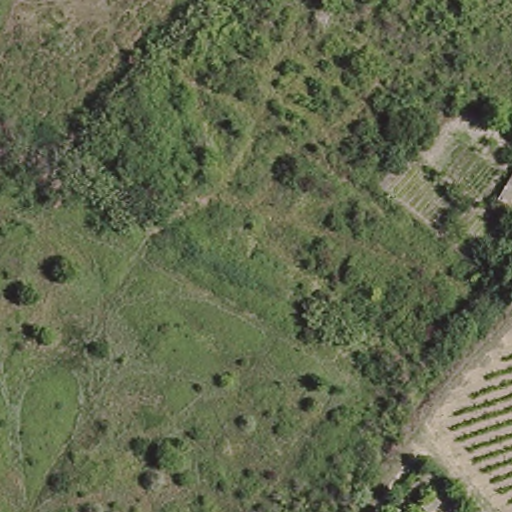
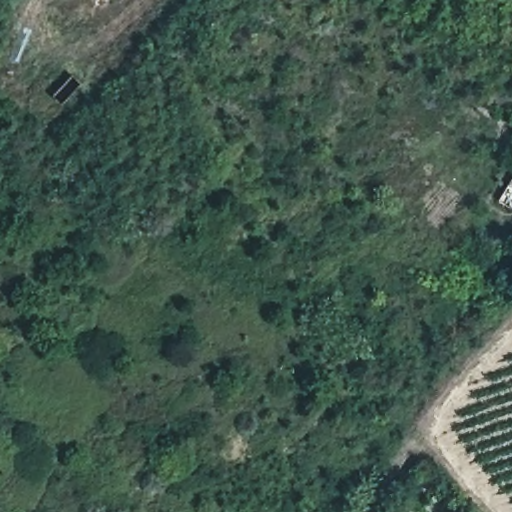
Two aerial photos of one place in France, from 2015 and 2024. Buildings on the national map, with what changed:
unchanged [(508,215),(487,205),(512,158),(512,208),(508,215)]

